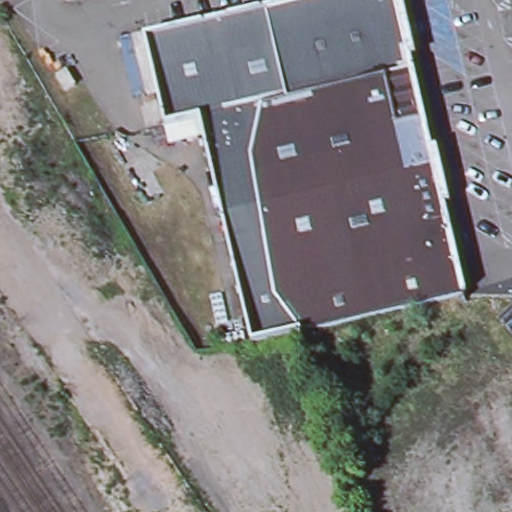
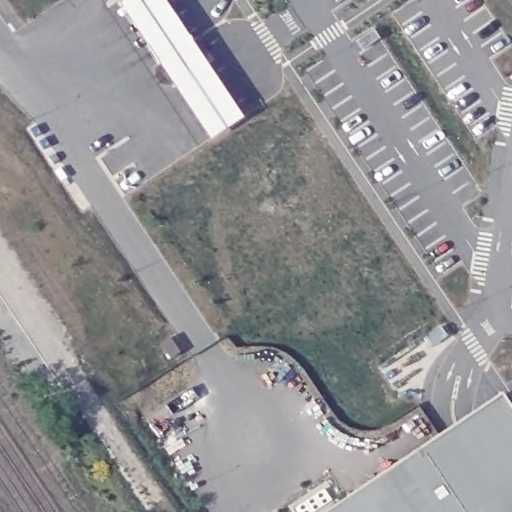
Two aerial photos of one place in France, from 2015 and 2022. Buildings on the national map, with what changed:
demolished [(167,127),(145,38),(223,19),(267,9),(276,6),(302,0),(398,0),(414,68),(420,94),(455,238),(458,255),(467,292),(302,330),(298,331),(280,335),(252,341),(201,119),(167,127)]
unchanged [(60,92),(51,77),(61,71),(70,86),(60,92)]
new [(499,394),(512,413),(512,512),(324,512),(499,394)]

